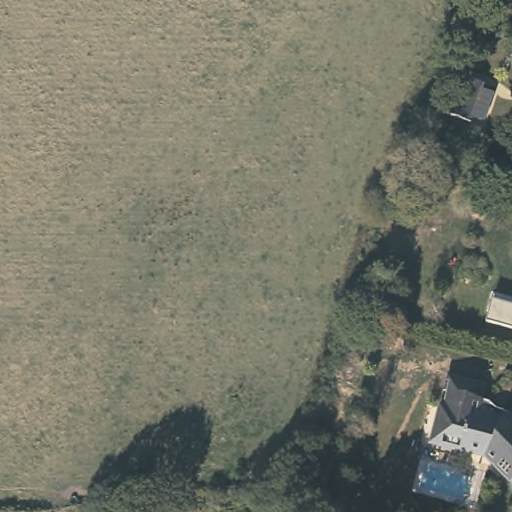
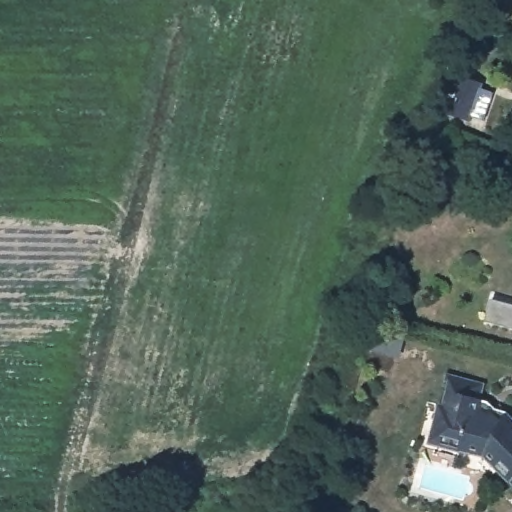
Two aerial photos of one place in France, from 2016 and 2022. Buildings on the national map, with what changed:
unchanged [(481,82),(463,119),(442,110),(461,71),(481,82)]
unchanged [(466,451),(435,443),(439,429),(446,407),(451,409),(455,391),(448,389),(452,374),(491,386),(487,404),(494,412),(502,413),(507,418),(512,416),(512,473),(500,461),(479,455),(466,451)]

